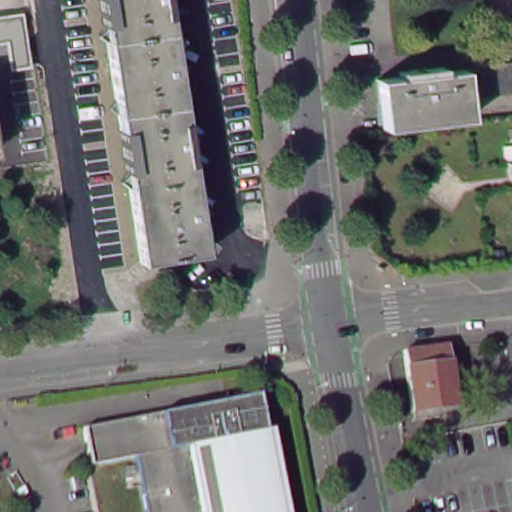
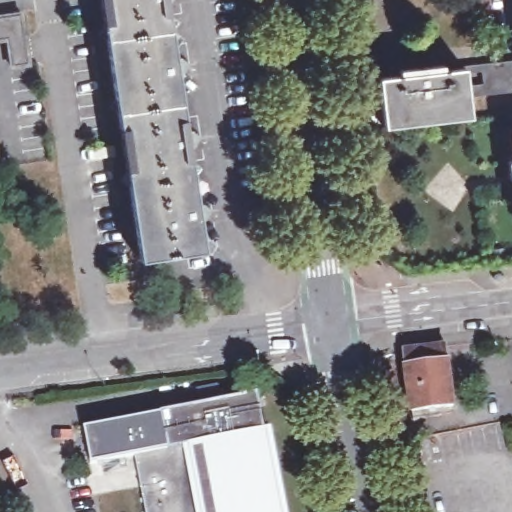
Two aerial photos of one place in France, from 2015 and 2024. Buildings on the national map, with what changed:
unchanged [(101,0),(167,0),(204,250),(140,259),(101,0)]
unchanged [(20,14),(29,67),(10,69),(5,42),(0,42),(0,16),(20,14)]
unchanged [(512,64),(512,78),(487,81),(486,66),(512,64)]
unchanged [(470,117),(382,125),(379,78),(414,74),(413,68),(430,67),(430,72),(465,69),(470,117)]
unchanged [(512,164),(512,181),(510,165),(512,164)]
unchanged [(410,351),(450,347),(452,347),(460,406),(419,411),(410,351)]
unchanged [(89,426),(267,393),(289,512),(151,512),(140,456),(96,463),(89,426)]

